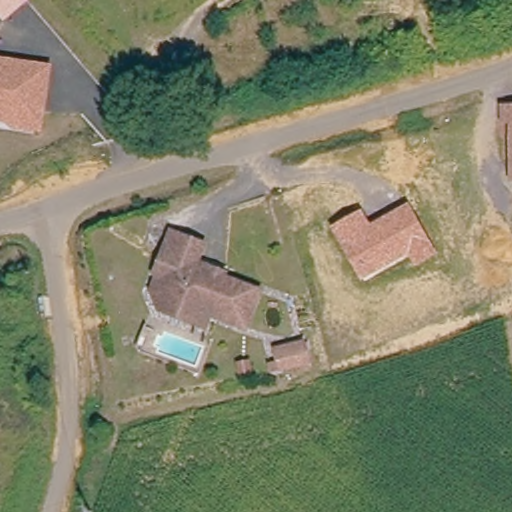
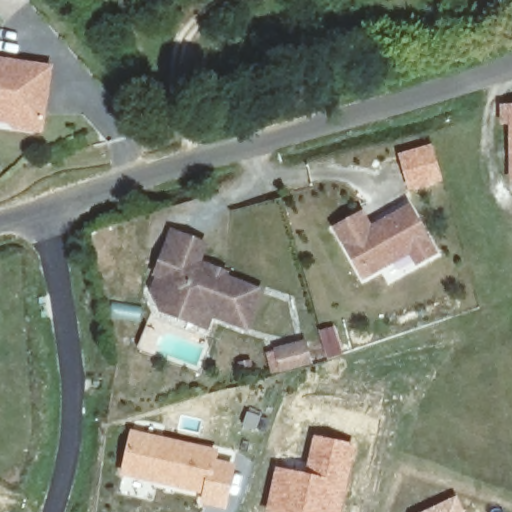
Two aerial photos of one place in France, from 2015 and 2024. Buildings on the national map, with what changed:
new [(0,13),(0,0),(15,0),(16,0),(0,13)]
unchanged [(49,88),(43,87),(39,116),(0,110),(0,62),(51,70),(49,88)]
unchanged [(43,87),(49,88),(41,134),(16,130),(9,123),(0,122),(0,110),(39,116),(43,87)]
unchanged [(512,104),(512,179),(509,179),(510,104),(512,104)]
unchanged [(415,267),(408,255),(361,279),(333,226),(362,208),(373,225),(411,203),(440,254),(415,267)]
unchanged [(167,319),(163,310),(158,299),(156,293),(156,281),(159,282),(163,265),(170,236),(201,244),(196,267),(216,272),(214,279),(222,281),(222,279),(262,290),(255,329),(213,318),(211,331),(176,321),(167,319)]
new [(334,325),(343,353),(326,359),(317,330),(334,325)]
unchanged [(293,355),(290,346),(316,337),(324,357),(297,368),(283,373),(278,361),(293,355)]
new [(130,429),(220,448),(217,458),(236,462),(226,510),(198,505),(201,494),(119,476),(130,429)]
new [(304,472),(313,434),(357,444),(342,512),(264,512),(275,466),(304,472)]
new [(427,512),(455,499),(460,512),(427,512)]

